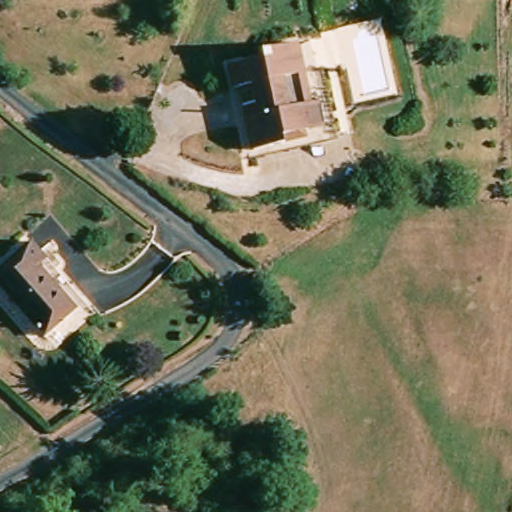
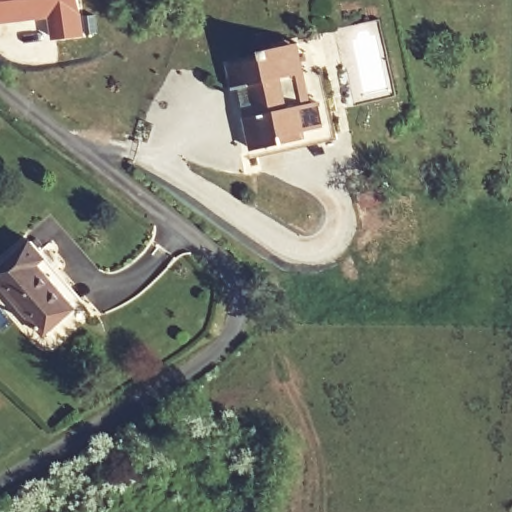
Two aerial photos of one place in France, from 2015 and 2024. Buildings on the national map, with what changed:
new [(87,21),(86,15),(96,14),(98,32),(50,41),(47,19),(0,24),(0,0),(81,0),(84,21),(87,21)]
unchanged [(328,139),(300,145),(297,131),(274,136),(275,143),(243,150),(237,118),(236,119),(233,105),(234,105),(230,88),(222,90),(217,66),(255,58),(253,51),(287,44),(293,72),(313,68),(328,139)]
unchanged [(45,336),(0,285),(0,269),(32,241),(47,258),(40,265),(77,308),(45,336)]

